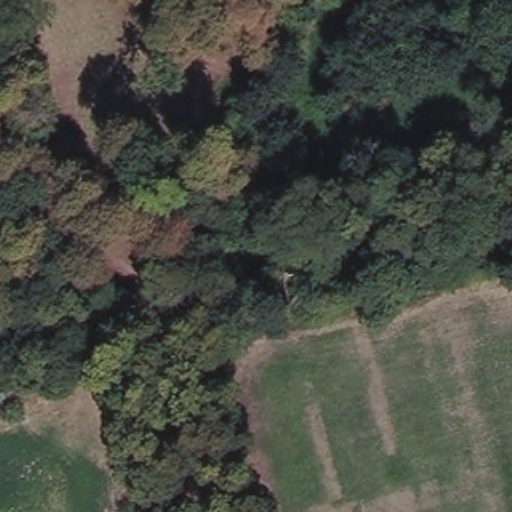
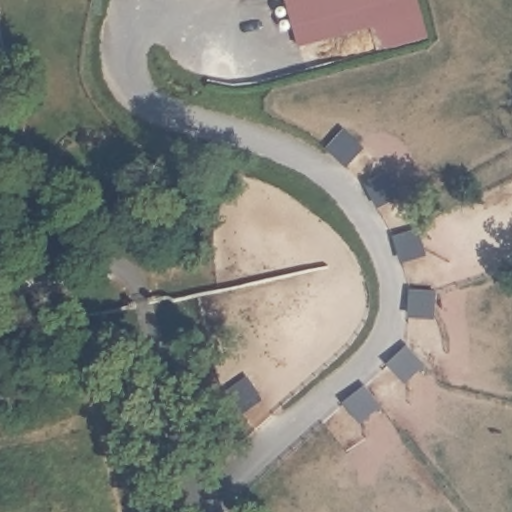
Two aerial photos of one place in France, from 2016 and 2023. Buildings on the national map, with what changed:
new [(430,37),(372,52),(365,27),(295,42),(284,0),(420,0),(430,37)]
new [(342,124),(366,145),(348,166),(323,147),(342,124)]
new [(383,160),(401,192),(377,206),(360,180),(383,160)]
new [(418,219),(429,256),(402,265),(390,230),(418,219)]
new [(437,285),(434,327),(404,327),(404,286),(437,285)]
new [(406,342),(427,363),(402,383),(384,364),(406,342)]
new [(248,368),(264,390),(242,408),(225,387),(248,368)]
new [(365,379),(383,402),(356,424),(339,403),(365,379)]

